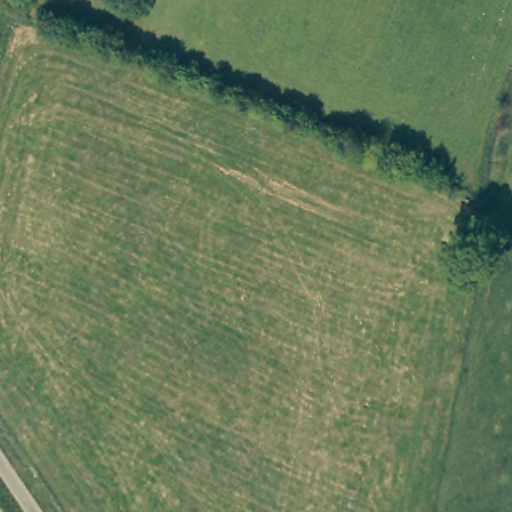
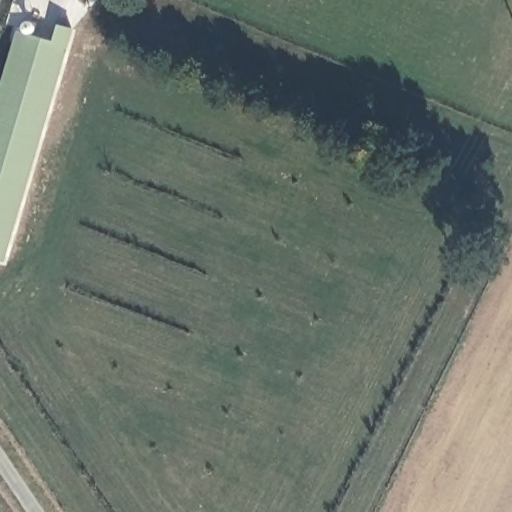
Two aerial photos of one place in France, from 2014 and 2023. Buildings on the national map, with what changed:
new [(54,41),(59,23),(75,28),(4,261),(0,259),(0,90),(18,30),(54,41)]

